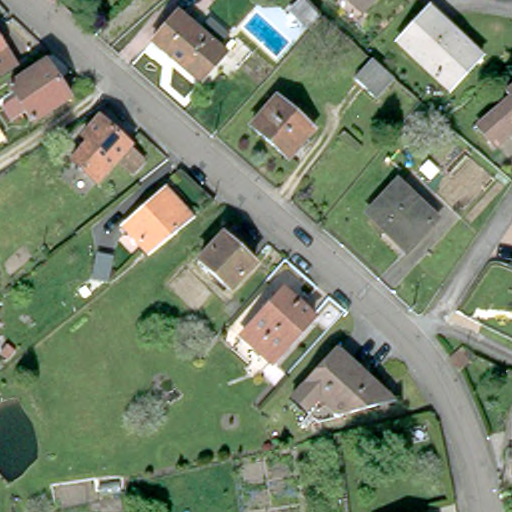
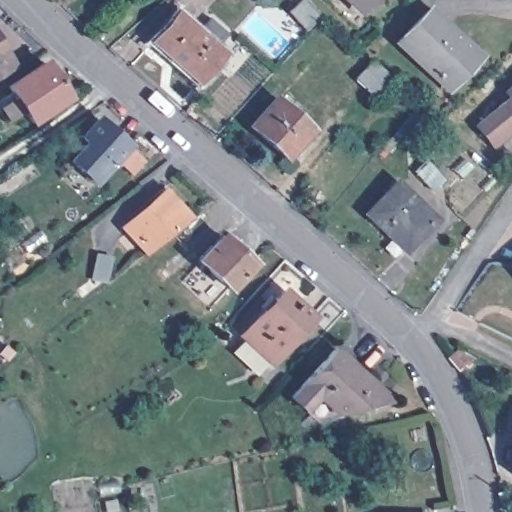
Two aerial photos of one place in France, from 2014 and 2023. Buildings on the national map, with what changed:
unchanged [(353,0),(372,0),(363,10),(353,0)]
unchanged [(316,20),(308,27),(291,8),(298,1),(316,20)]
unchanged [(479,52),(449,83),(399,37),(429,5),(479,52)]
unchanged [(223,54),(198,81),(153,42),(177,15),(223,54)]
unchanged [(0,36),(13,57),(0,64),(0,36)]
unchanged [(394,80),(377,98),(356,79),(371,60),(394,80)]
unchanged [(68,97),(34,121),(11,87),(45,64),(68,97)]
unchanged [(508,92),(512,88),(512,96),(508,92)]
unchanged [(495,146),(479,127),(512,97),(512,131),(495,146)]
unchanged [(312,131),(286,157),(251,125),(276,98),(312,131)]
unchanged [(130,169),(115,156),(98,176),(72,155),(88,136),(81,131),(97,114),(129,142),(143,154),(130,169)]
unchanged [(394,236),(369,213),(395,187),(432,221),(412,241),(406,247),(394,236)]
unchanged [(147,248),(124,222),(163,189),(183,213),(169,225),(171,228),(147,248)]
unchanged [(254,258),(231,283),(201,256),(223,232),(254,258)]
unchanged [(111,257),(107,282),(93,278),(97,255),(111,257)]
unchanged [(313,317),(292,338),(271,361),(242,336),(266,309),(284,290),(313,317)]
unchanged [(385,387),(373,402),(318,416),(291,392),(336,345),(385,387)]
unchanged [(451,358),(460,350),(470,362),(461,371),(451,358)]

